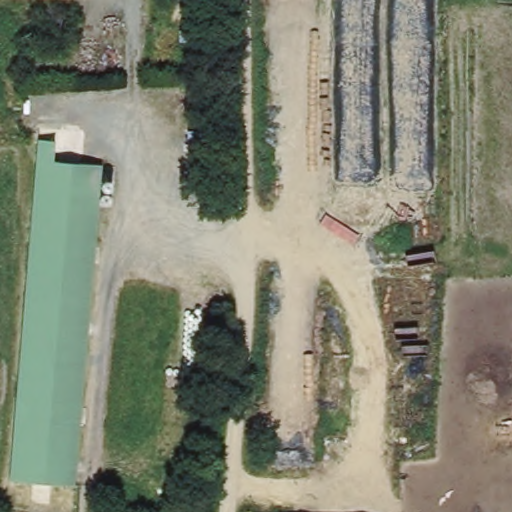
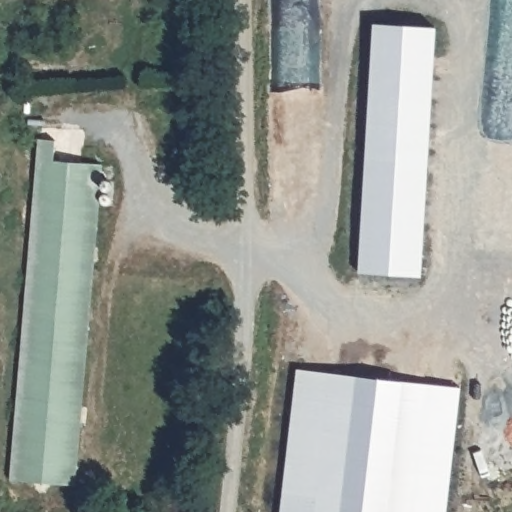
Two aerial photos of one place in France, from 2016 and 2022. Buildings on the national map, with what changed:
new [(358,272),(373,23),(436,27),(420,276),(358,272)]
unchanged [(56,141),(54,161),(100,164),(73,485),(12,481),(40,139),(56,141)]
new [(402,381),(388,512),(281,512),(296,369),(402,381)]

